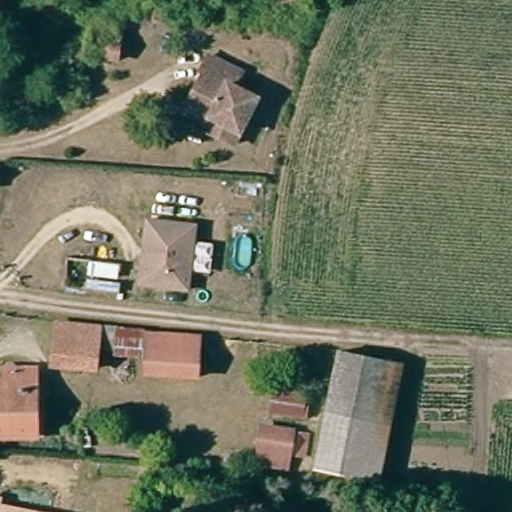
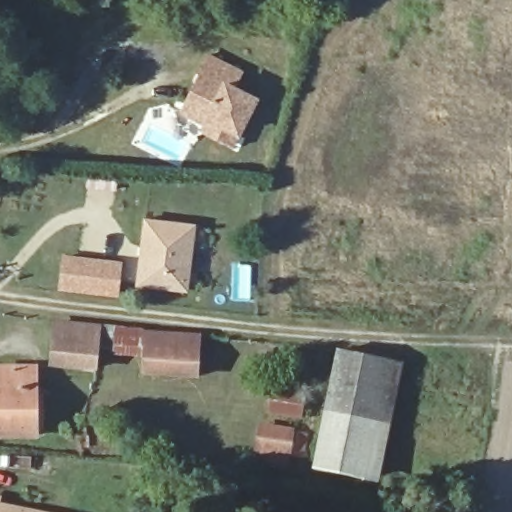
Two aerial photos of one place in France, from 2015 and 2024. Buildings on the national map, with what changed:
unchanged [(117,24),(113,57),(90,54),(94,21),(117,24)]
demolished [(55,30),(54,48),(36,47),(37,29),(55,30)]
unchanged [(203,120),(179,107),(183,100),(207,53),(238,70),(231,82),(254,95),(230,141),(211,132),(200,126),(203,120)]
unchanged [(193,227),(184,287),(136,280),(145,215),(189,222),(194,223),(193,227)]
new [(124,260),(121,296),(60,289),(64,254),(124,260)]
unchanged [(96,326),(92,366),(52,361),(56,322),(96,326)]
unchanged [(142,374),(145,348),(146,334),(198,340),(197,354),(195,379),(142,374)]
unchanged [(386,364),(371,482),(323,476),(335,372),(338,358),(361,360),(386,364)]
unchanged [(36,370),(32,437),(0,436),(0,387),(12,387),(12,368),(36,370)]
unchanged [(313,439),(309,463),(290,460),(288,474),(259,470),(266,432),(313,439)]
unchanged [(18,512),(0,512),(0,508),(18,512)]

